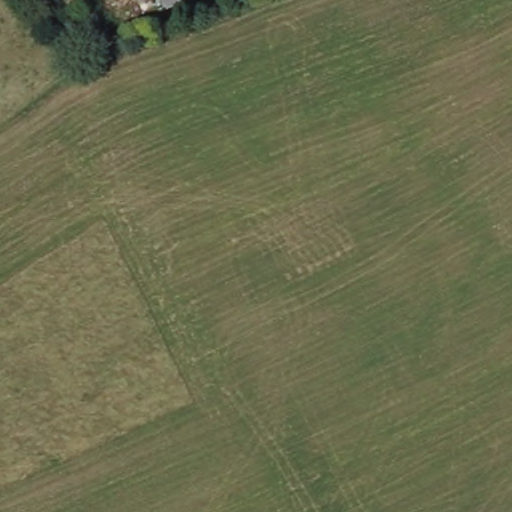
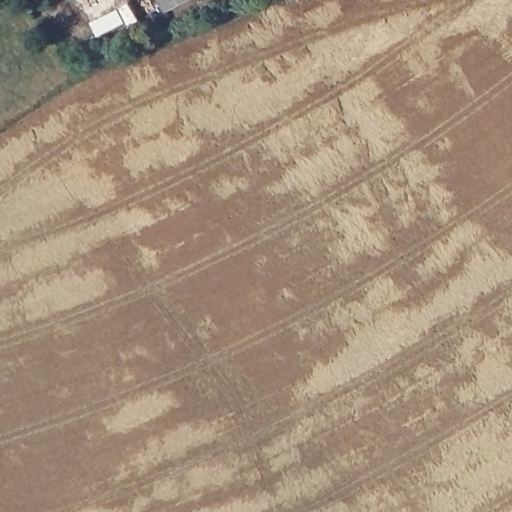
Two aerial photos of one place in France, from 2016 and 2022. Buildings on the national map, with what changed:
unchanged [(159,0),(181,0),(163,9),(159,0)]

